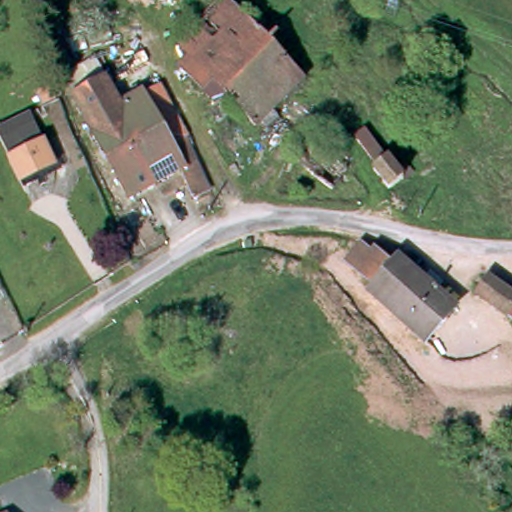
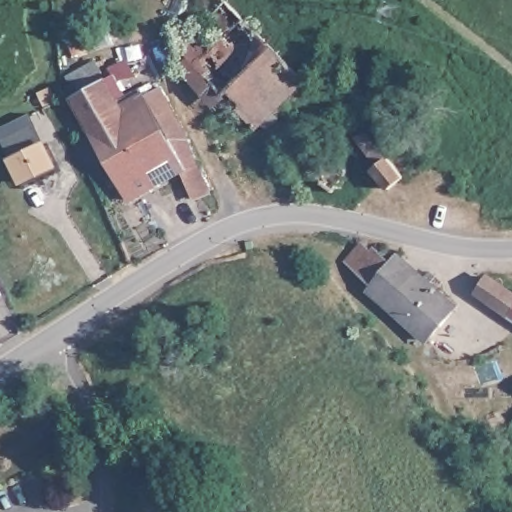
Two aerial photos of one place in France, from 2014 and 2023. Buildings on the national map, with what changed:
unchanged [(232,0),(305,80),(257,124),(215,77),(203,87),(182,63),(193,53),(187,45),(182,41),(228,0),(232,0)]
unchanged [(196,186),(187,191),(175,169),(120,197),(80,119),(67,92),(97,77),(110,103),(137,88),(160,136),(171,131),(196,186)]
unchanged [(17,168),(8,151),(40,136),(50,154),(60,174),(27,189),(17,168)]
unchanged [(325,189),(294,163),(310,142),(342,168),(325,189)]
unchanged [(377,164),(378,163),(394,177),(383,190),(367,175),(377,164)]
unchanged [(418,340),(365,284),(369,281),(345,255),(362,241),(370,249),(375,245),(390,261),(399,254),(422,279),(430,271),(443,284),(435,291),(455,311),(418,340)]
unchanged [(487,271),(512,287),(512,320),(472,291),(487,271)]

